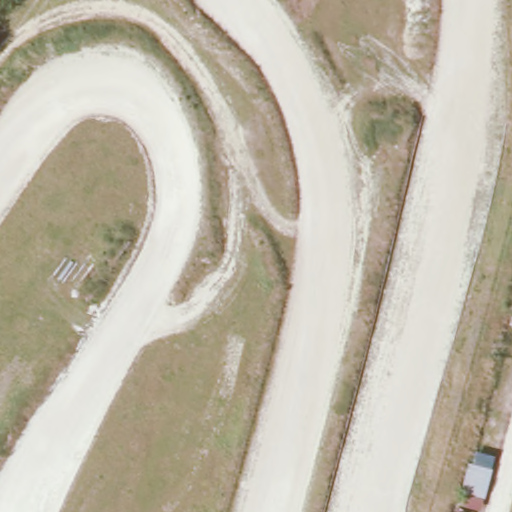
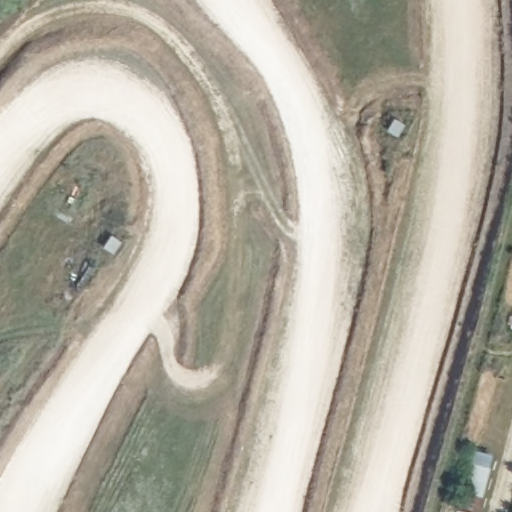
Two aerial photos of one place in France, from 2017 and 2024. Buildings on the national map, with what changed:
unchanged [(468,461),(492,466),(484,495),(460,488),(468,461)]

